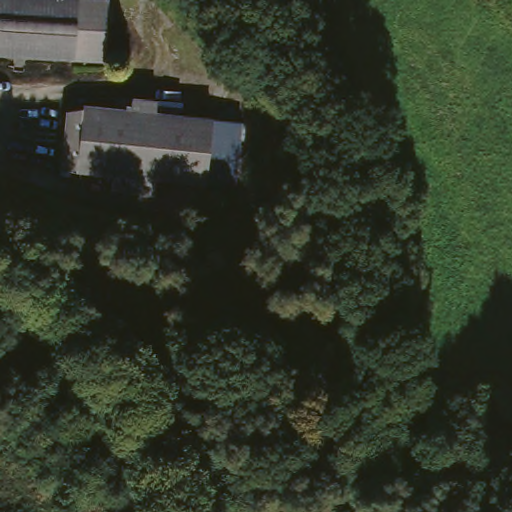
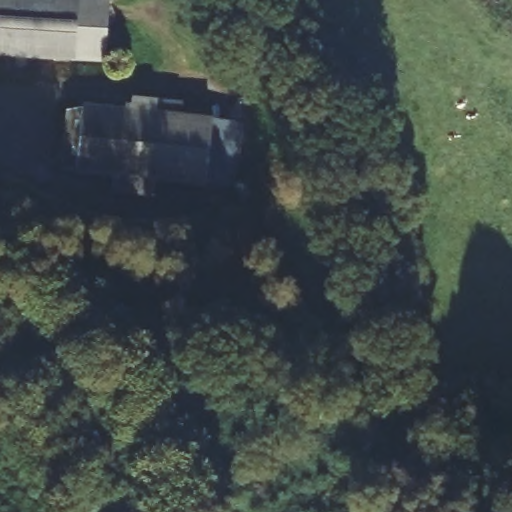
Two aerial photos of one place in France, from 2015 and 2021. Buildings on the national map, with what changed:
unchanged [(15,53),(0,51),(0,0),(84,0),(81,56),(32,54),(31,63),(15,61),(15,53)]
unchanged [(81,56),(84,0),(115,0),(111,57),(81,56)]
unchanged [(128,99),(153,101),(152,116),(208,121),(202,183),(152,180),(149,196),(109,192),(110,175),(57,169),(63,112),(79,109),(109,110),(111,97),(128,99)]
unchanged [(238,126),(231,186),(202,183),(208,121),(238,126)]

